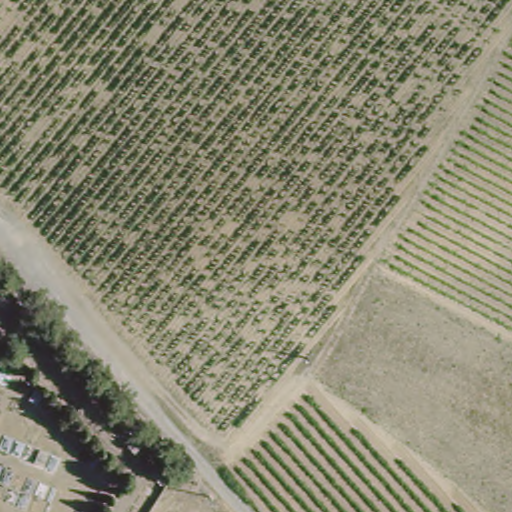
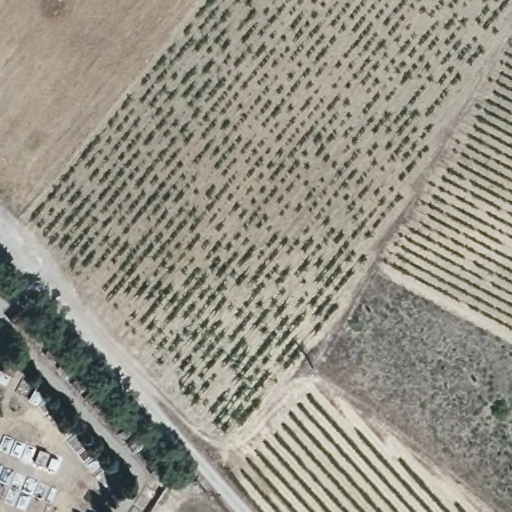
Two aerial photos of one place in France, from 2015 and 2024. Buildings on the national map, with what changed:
[]

